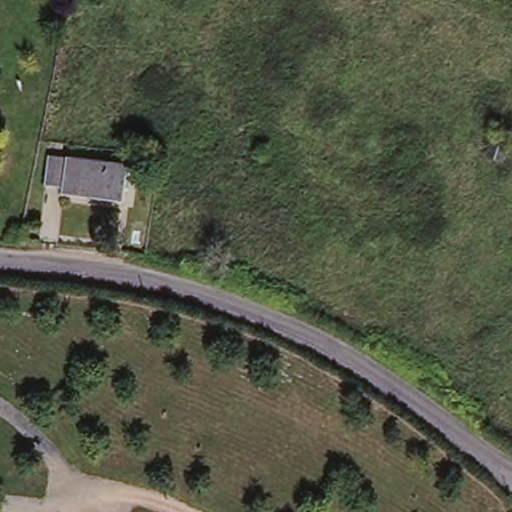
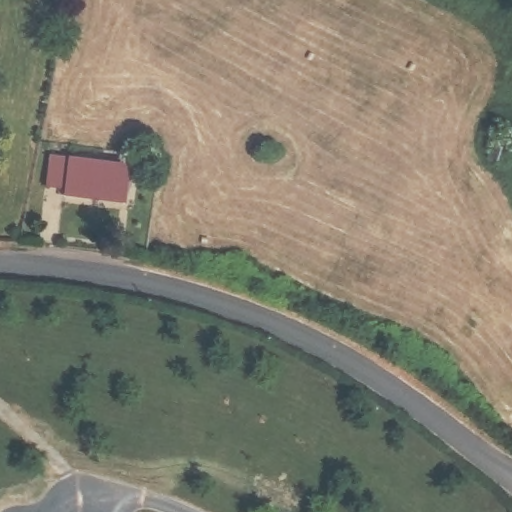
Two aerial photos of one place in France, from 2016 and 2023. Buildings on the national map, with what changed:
unchanged [(512,132),(512,144),(507,163),(490,158),(499,128),(512,132)]
unchanged [(131,163),(125,201),(66,192),(67,185),(46,180),(52,154),(131,163)]

